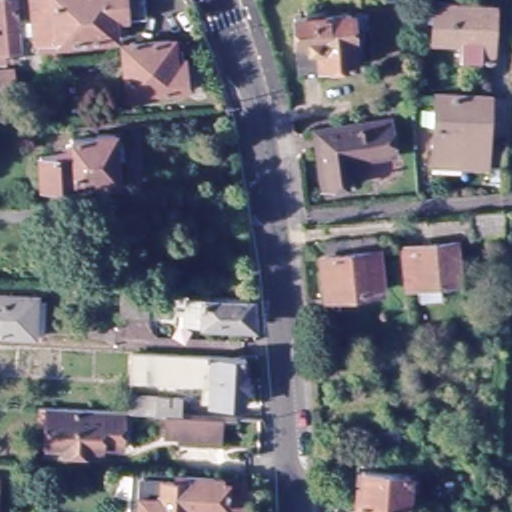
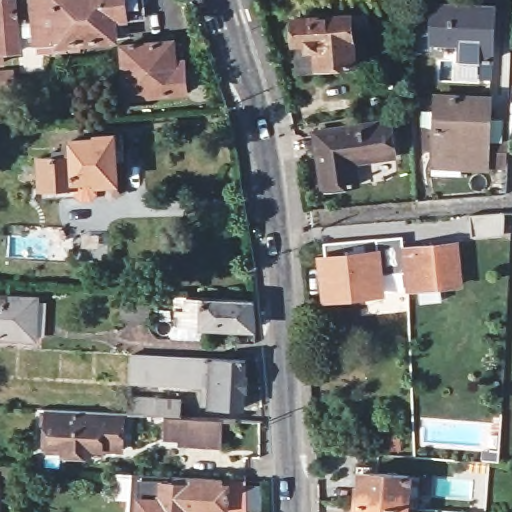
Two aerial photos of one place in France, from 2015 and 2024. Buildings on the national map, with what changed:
unchanged [(34,21),(32,0),(144,0),(145,17),(125,19),(126,30),(120,31),(120,38),(84,40),(84,47),(69,48),(67,41),(64,41),(64,49),(35,50),(33,37),(21,39),(22,49),(4,50),(5,62),(0,63),(0,0),(18,0),(20,22),(34,21)]
unchanged [(491,59),(459,57),(461,40),(432,39),(433,4),(493,7),(491,59)]
unchanged [(293,77),(293,67),(290,42),(289,21),(301,20),(301,16),(316,15),(316,19),(358,16),(361,62),(330,65),(331,74),(293,77)]
unchanged [(126,46),(176,42),(177,57),(186,56),(189,90),(130,95),(126,46)]
unchanged [(15,84),(0,86),(0,71),(15,70),(15,84)]
unchanged [(506,174),(432,170),(437,101),(473,102),(472,109),(489,110),(488,140),(507,143),(507,155),(506,174)]
unchanged [(323,154),(320,131),(393,121),(398,156),(360,160),(362,184),(335,187),(328,187),(323,154)]
unchanged [(46,187),(44,157),(77,155),(76,139),(103,137),(102,134),(119,133),(122,181),(100,183),(80,185),(46,187)]
unchanged [(501,214),(503,235),(470,239),(467,216),(501,214)]
unchanged [(411,249),(465,244),(469,284),(446,285),(447,300),(422,301),(421,286),(413,286),(411,249)]
unchanged [(377,248),(381,302),(327,307),(323,268),(326,267),(326,252),(377,248)]
unchanged [(149,318),(142,318),(120,316),(121,296),(142,297),(149,298),(149,318)]
unchanged [(201,330),(184,328),(185,296),(251,300),(254,325),(255,335),(201,330)]
unchanged [(27,339),(0,337),(0,297),(27,299),(35,300),(32,339),(27,339)]
unchanged [(254,364),(252,414),(210,411),(211,390),(141,385),(142,357),(254,364)]
unchanged [(154,436),(154,415),(130,413),(131,398),(179,401),(178,416),(225,420),(235,420),(234,427),(225,427),(225,439),(225,449),(185,447),(175,447),(175,437),(154,436)]
unchanged [(124,415),(120,450),(91,448),(91,455),(64,455),(64,446),(47,445),(49,412),(124,415)]
unchanged [(398,430),(399,450),(380,448),(380,446),(372,446),(372,435),(378,436),(379,431),(398,430)]
unchanged [(353,483),(355,471),(362,471),(422,475),(420,497),(406,496),(406,506),(360,502),(361,484),(353,483)]
unchanged [(133,502),(135,478),(171,480),(239,485),(237,512),(133,512),(133,502)]
unchanged [(360,502),(406,506),(405,512),(359,512),(360,502)]

